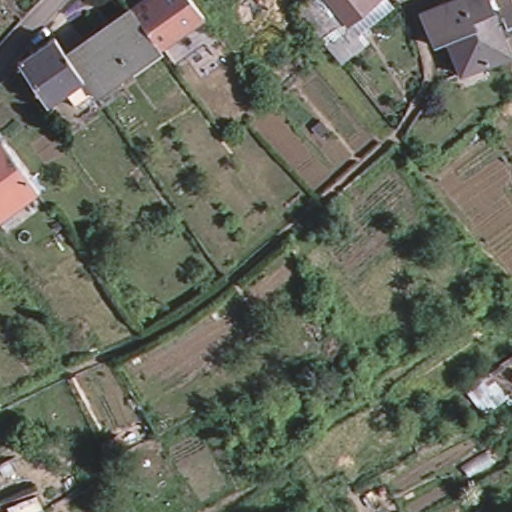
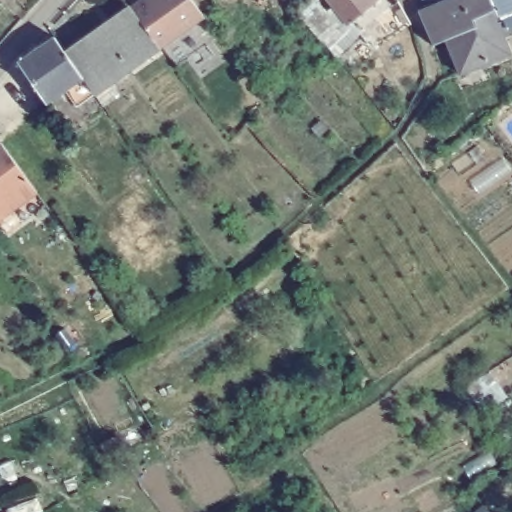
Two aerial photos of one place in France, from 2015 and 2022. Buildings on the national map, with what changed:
unchanged [(199,19),(198,20),(157,51),(127,12),(144,0),(185,0),(199,19)]
unchanged [(295,8),(308,0),(325,0),(342,22),(367,0),(387,0),(395,8),(361,35),(367,44),(343,64),(295,8)]
unchanged [(342,22),(325,0),(367,0),(342,22)]
unchanged [(512,8),(512,16),(512,26),(511,27),(498,32),(505,49),(455,74),(440,40),(439,38),(425,45),(423,42),(410,12),(436,0),(509,0),(512,8)]
unchanged [(66,59),(127,12),(157,51),(92,98),(81,81),(66,59)]
unchanged [(43,106),(16,66),(53,41),(66,59),(81,81),(43,106)]
unchanged [(0,143),(36,195),(0,219),(0,143)]
unchanged [(512,181),(510,178),(512,177),(512,181)]

